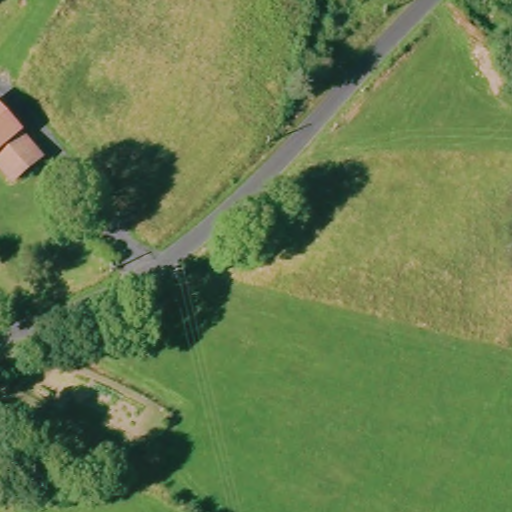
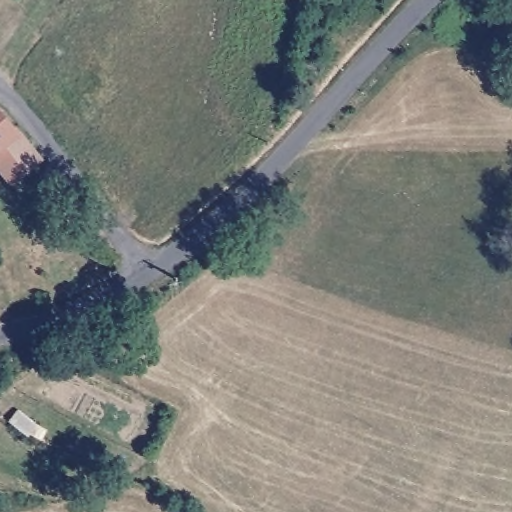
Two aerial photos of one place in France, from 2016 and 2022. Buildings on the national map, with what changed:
unchanged [(0,155),(0,108),(25,137),(0,155)]
unchanged [(14,184),(0,167),(0,155),(25,137),(45,161),(14,184)]

